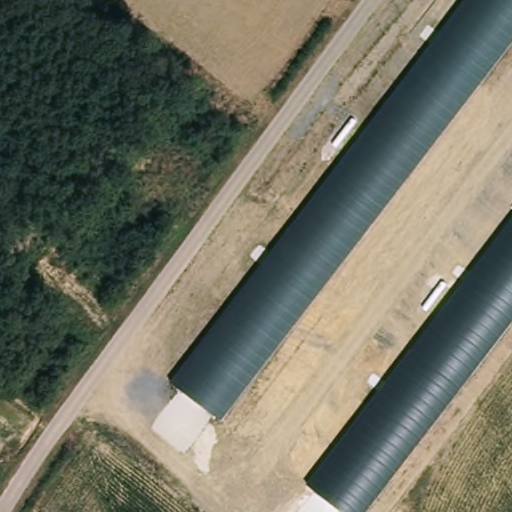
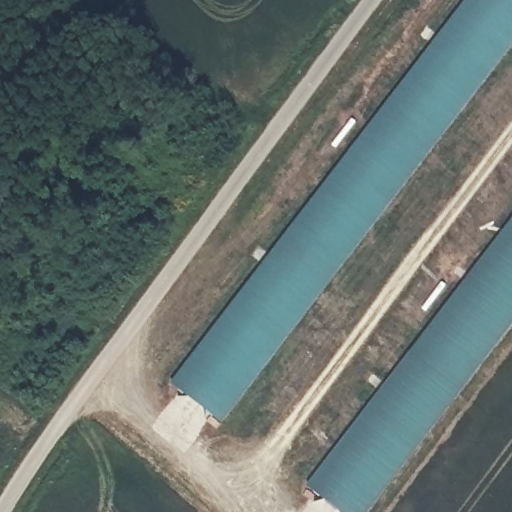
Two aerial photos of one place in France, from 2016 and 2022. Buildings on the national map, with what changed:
unchanged [(468,0),(512,0),(512,40),(221,420),(174,382),(468,0)]
unchanged [(512,222),(512,319),(365,512),(343,512),(308,485),(512,222)]

